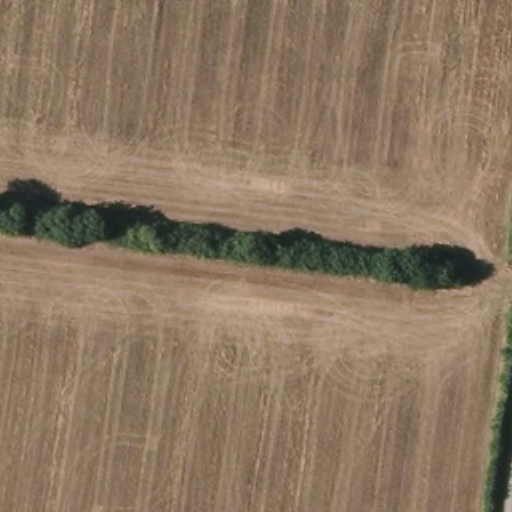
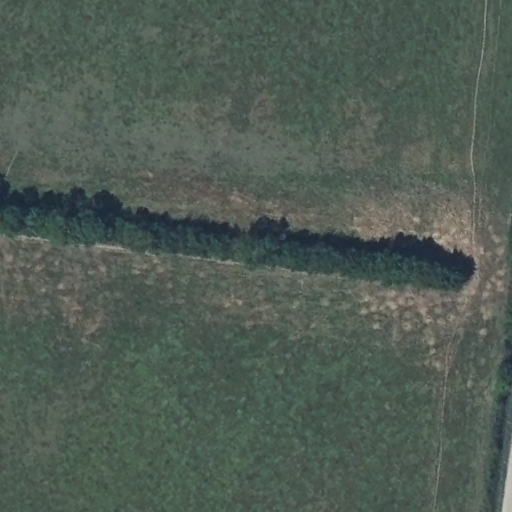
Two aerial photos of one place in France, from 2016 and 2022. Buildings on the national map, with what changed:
[]

